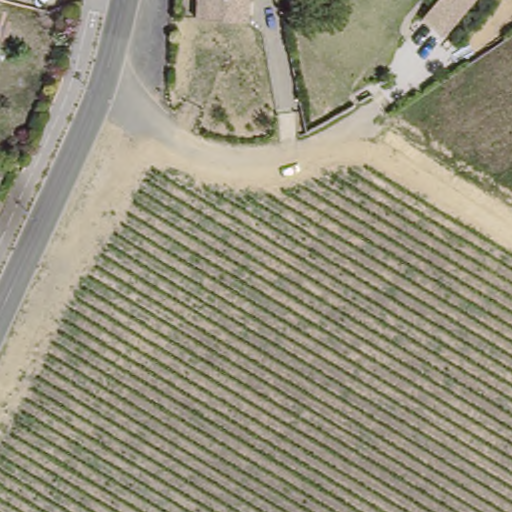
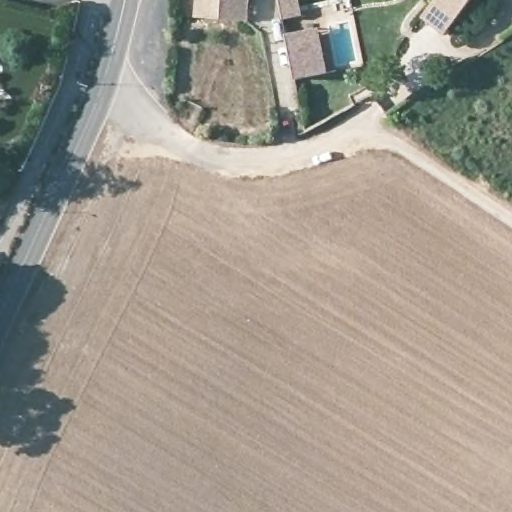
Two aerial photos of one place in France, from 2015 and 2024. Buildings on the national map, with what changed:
unchanged [(199,11),(200,0),(251,0),(250,14),(199,11)]
unchanged [(425,9),(432,0),(468,0),(447,26),(425,9)]
new [(296,80),(287,34),(320,28),(330,73),(296,80)]

